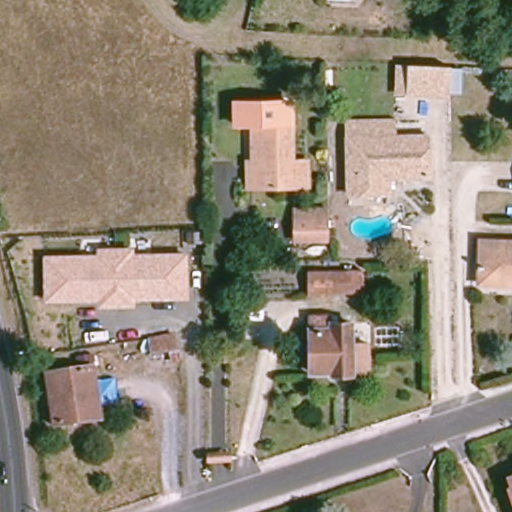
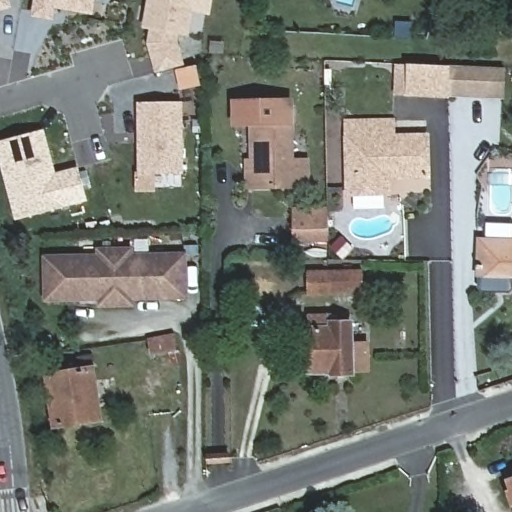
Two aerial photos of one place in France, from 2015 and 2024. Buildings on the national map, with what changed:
new [(0,10),(0,0),(4,0),(7,7),(0,10)]
new [(37,0),(93,0),(91,13),(54,6),(51,19),(34,15),(37,0)]
new [(153,28),(146,27),(150,0),(210,0),(208,13),(191,10),(187,35),(177,33),(175,44),(181,67),(158,73),(150,45),(151,42),(153,28)]
unchanged [(444,64),(445,92),(405,93),(392,93),(392,62),(404,62),(408,63),(444,64)]
new [(444,64),(506,68),(504,99),(445,92),(444,64)]
unchanged [(278,122),(255,123),(255,126),(229,126),(232,98),(294,98),(294,122),(278,122)]
new [(181,106),(181,174),(141,174),(141,107),(181,106)]
unchanged [(310,186),(294,186),(250,187),(250,163),(255,162),(255,123),(294,122),(294,162),(309,162),(310,186)]
unchanged [(389,195),(348,195),(347,123),(367,123),(380,123),(380,139),(427,138),(428,178),(403,179),(388,179),(389,195)]
new [(53,179),(76,173),(83,202),(16,219),(0,157),(0,147),(41,136),(53,179)]
unchanged [(295,218),(295,209),(329,209),(329,217),(329,239),(295,239),(295,218)]
unchanged [(481,277),(482,240),(512,241),(512,285),(481,283),(481,277)]
unchanged [(188,299),(135,300),(135,306),(98,306),(98,299),(43,300),(45,255),(98,252),(98,248),(135,247),(135,252),(187,251),(188,299)]
unchanged [(365,271),(365,293),(310,293),(309,271),(365,271)]
unchanged [(331,317),(331,323),(352,323),(353,344),(369,344),(369,370),(353,370),(353,375),(331,375),(332,372),(312,371),(311,317),(331,317)]
unchanged [(189,359),(174,363),(172,352),(155,357),(151,340),(182,333),(189,359)]
unchanged [(94,370),(100,420),(56,426),(49,376),(94,370)]

